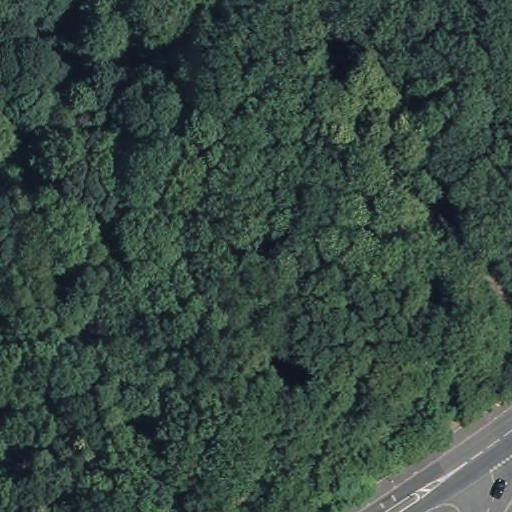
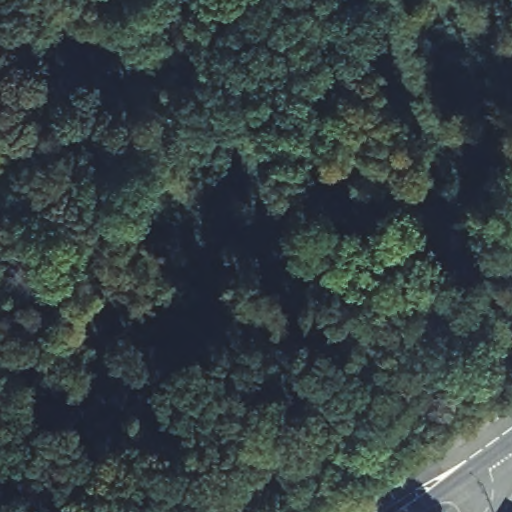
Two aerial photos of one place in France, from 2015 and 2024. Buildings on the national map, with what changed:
unchanged [(426,219),(433,213),(441,222),(434,228),(426,219)]

